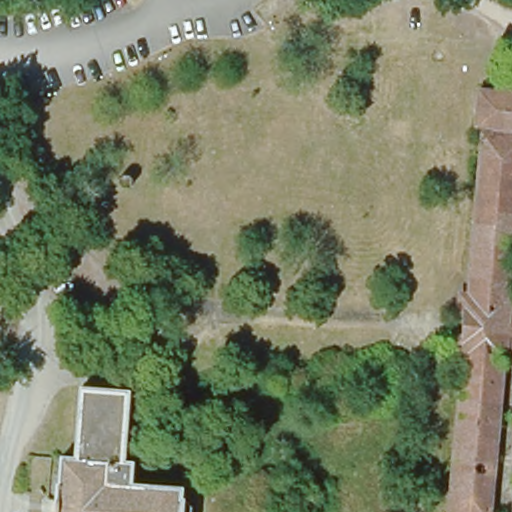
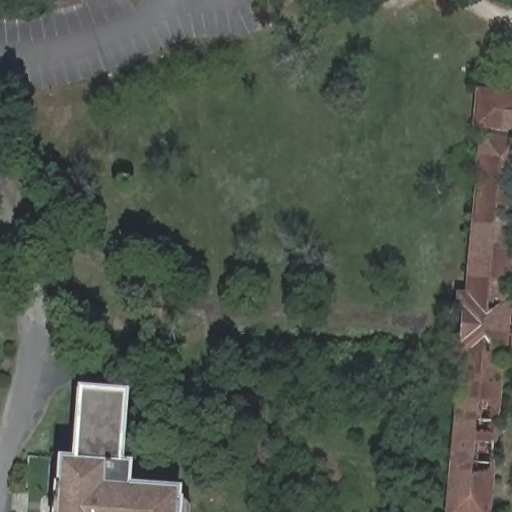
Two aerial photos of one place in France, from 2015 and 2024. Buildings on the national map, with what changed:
unchanged [(460,308),(462,291),(470,292),(488,121),(481,120),(485,87),(512,90),(512,244),(507,296),(511,296),(510,305),(512,305),(512,353),(501,352),(484,512),(446,512),(463,352),(455,351),(457,333),(466,334),(468,308),(460,308)]
unchanged [(125,179),(124,195),(110,194),(111,178),(125,179)]
unchanged [(71,464),(76,395),(123,399),(119,468),(130,469),(128,491),(180,496),(180,508),(193,509),(193,512),(53,512),(57,463),(71,464)]

